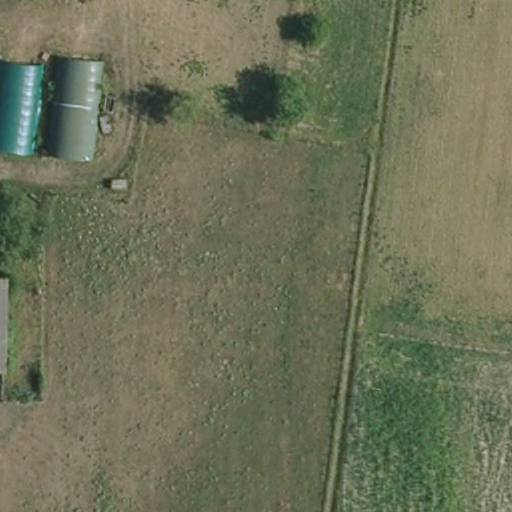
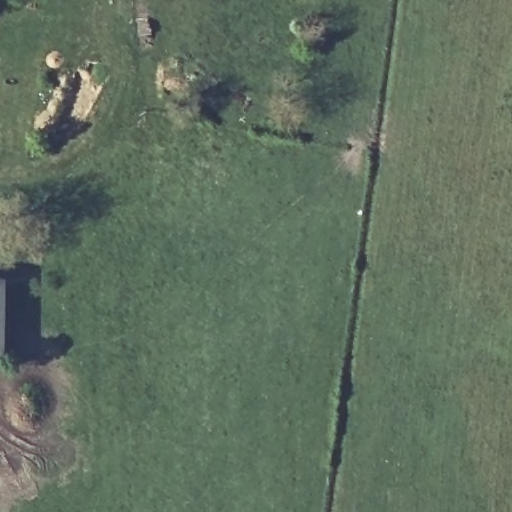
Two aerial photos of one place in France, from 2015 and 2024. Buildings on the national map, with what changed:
demolished [(54,65),(55,53),(100,59),(90,160),(0,150),(0,59),(54,65)]
unchanged [(4,275),(2,367),(0,367),(0,275),(4,275)]

